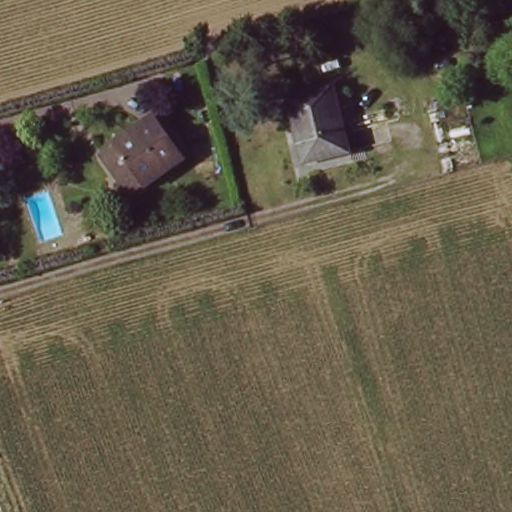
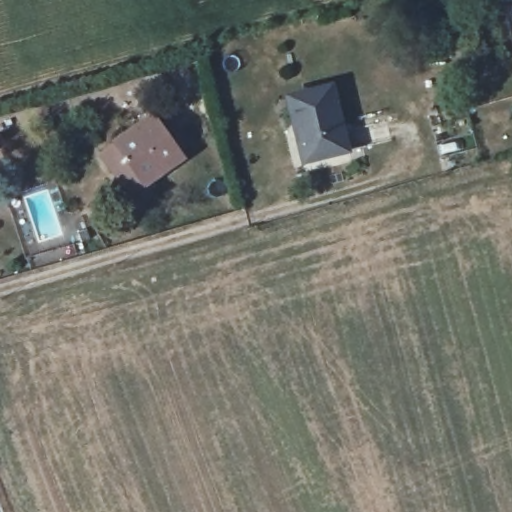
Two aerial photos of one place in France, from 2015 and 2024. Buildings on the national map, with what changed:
unchanged [(309,157),(293,99),(333,86),(350,145),(309,157)]
unchanged [(184,160),(129,195),(102,154),(155,120),(184,160)]

